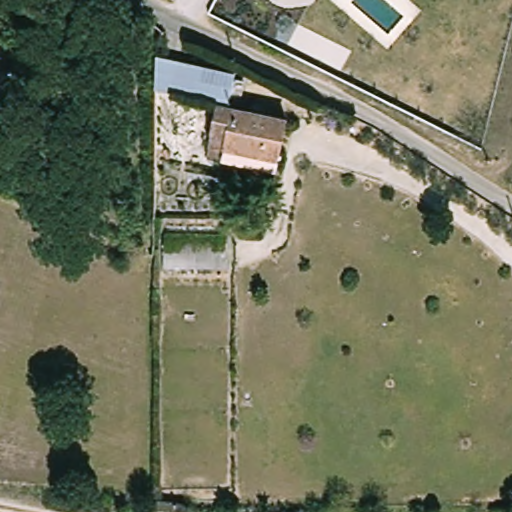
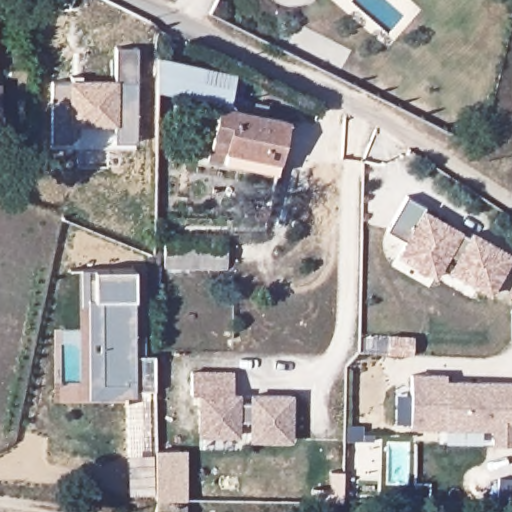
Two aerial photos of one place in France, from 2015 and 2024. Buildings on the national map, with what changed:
new [(135,141),(114,140),(114,123),(69,121),(69,139),(51,139),(51,80),(67,81),(67,78),(115,77),(115,45),(136,45),(135,141)]
unchanged [(234,101),(162,86),(162,54),(240,74),(234,101)]
unchanged [(1,103),(0,103),(0,75),(1,75),(1,103)]
unchanged [(226,161),(228,146),(230,135),(218,133),(225,106),(291,120),(282,158),(279,174),(226,161)]
new [(450,254),(435,279),(396,256),(405,241),(388,230),(408,198),(425,208),(424,210),(462,233),(469,238),(472,232),(512,255),(512,262),(490,297),(447,273),(457,258),(450,254)]
unchanged [(228,268),(167,268),(167,233),(228,233),(228,268)]
new [(93,268),(133,267),(133,298),(135,332),(144,333),(144,352),(153,352),(153,388),(150,388),(152,491),(127,492),(125,394),(86,395),(86,301),(79,301),(78,266),(93,268)]
new [(189,372),(231,373),(230,395),(236,395),(236,403),(249,403),(249,396),(289,396),(288,440),(248,440),(249,421),(235,421),(235,435),(197,435),(198,394),(188,394),(189,372)]
unchanged [(415,378),(450,378),(450,384),(512,385),(512,448),(496,448),(497,431),(414,430),(415,378)]
new [(397,424),(397,395),(412,395),(412,424),(397,424)]
new [(185,448),(186,498),(155,498),(155,449),(185,448)]
new [(500,482),(512,482),(512,509),(500,509),(500,482)]
unchanged [(183,512),(154,512),(155,501),(183,504),(183,512)]

